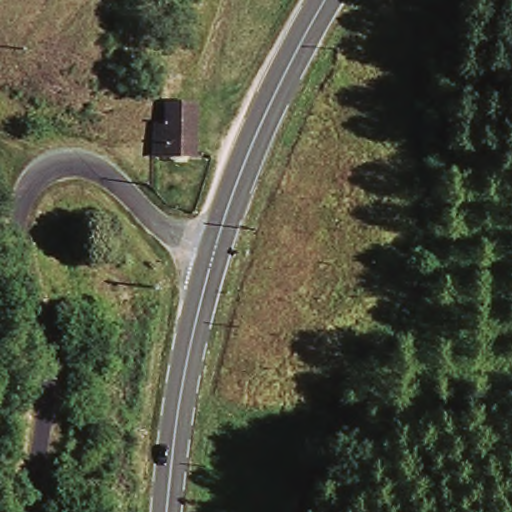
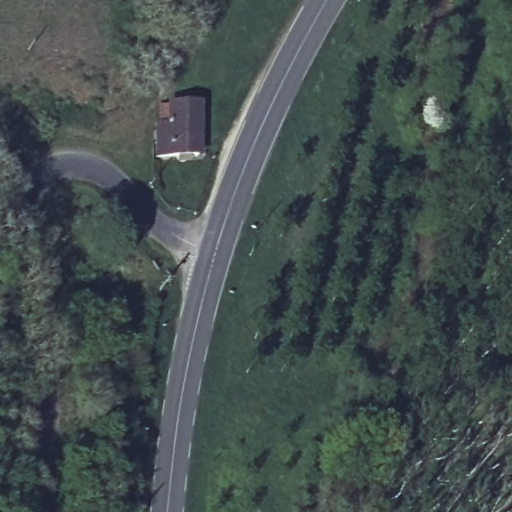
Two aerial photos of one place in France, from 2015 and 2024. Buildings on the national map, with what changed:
unchanged [(168,127),(170,107),(199,108),(197,156),(157,154),(157,131),(157,127),(168,127)]

